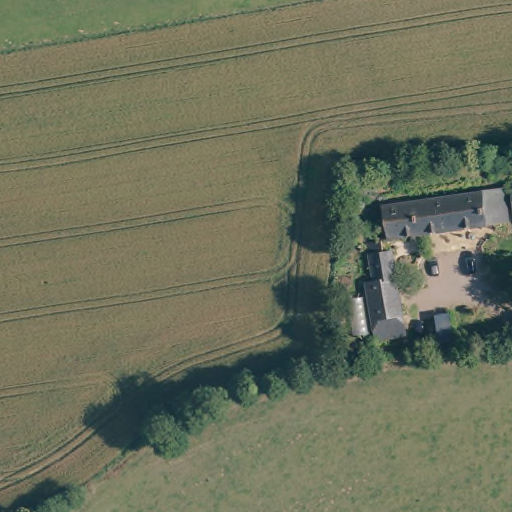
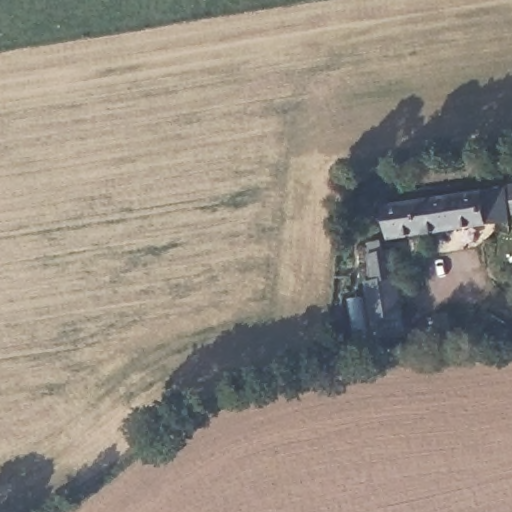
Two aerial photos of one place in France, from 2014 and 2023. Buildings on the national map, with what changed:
unchanged [(512,181),(512,189),(511,181),(512,181)]
unchanged [(390,234),(385,202),(503,185),(507,216),(460,224),(390,234)]
unchanged [(376,336),(373,316),(366,278),(373,277),(366,239),(380,237),(382,247),(390,246),(395,273),(402,311),(406,330),(376,336)]

